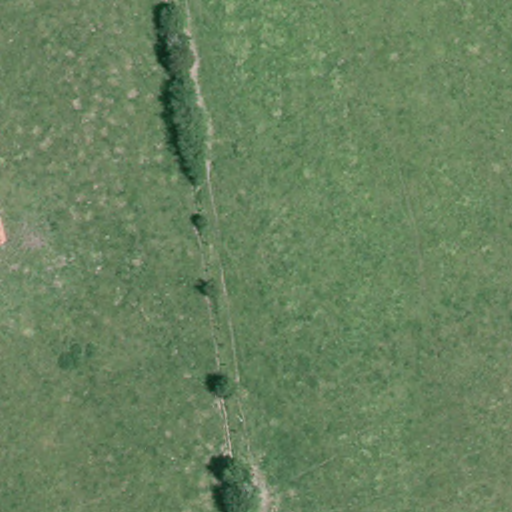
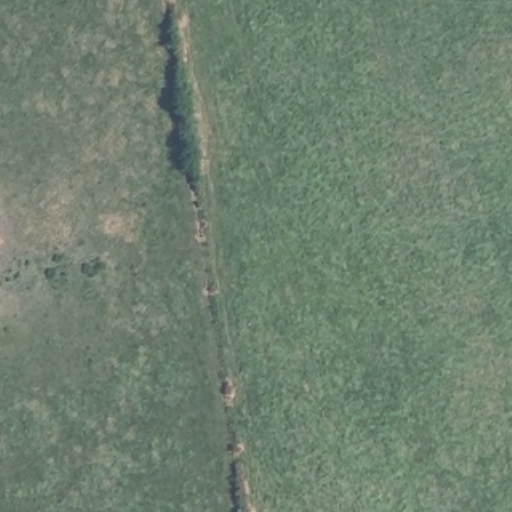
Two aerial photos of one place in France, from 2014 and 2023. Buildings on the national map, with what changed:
unchanged [(2,242),(0,242),(0,237),(2,242)]

